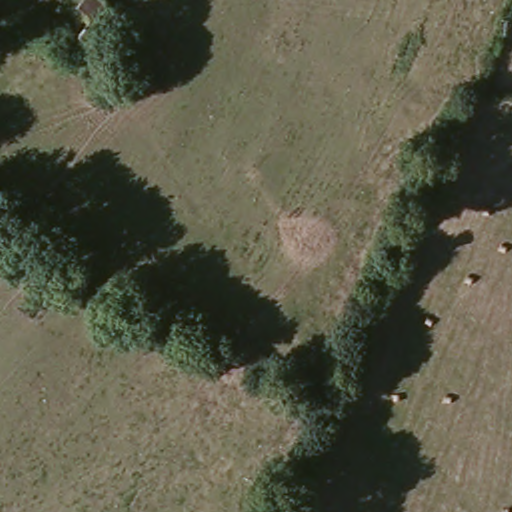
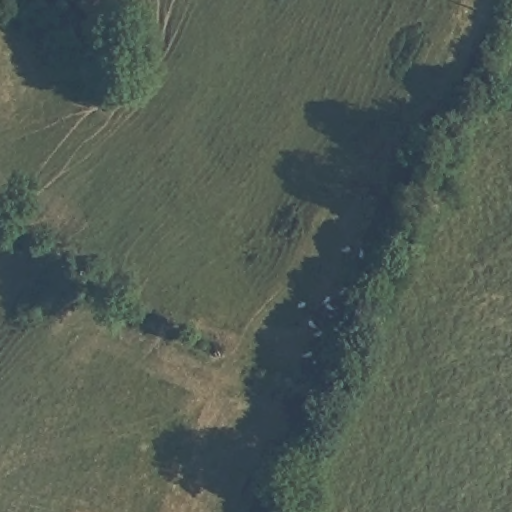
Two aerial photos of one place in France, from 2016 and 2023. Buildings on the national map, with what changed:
unchanged [(96,39),(77,27),(84,15),(70,5),(74,0),(110,0),(117,4),(96,39)]

